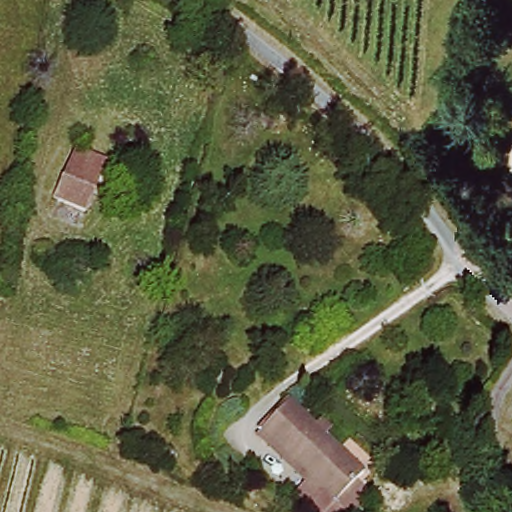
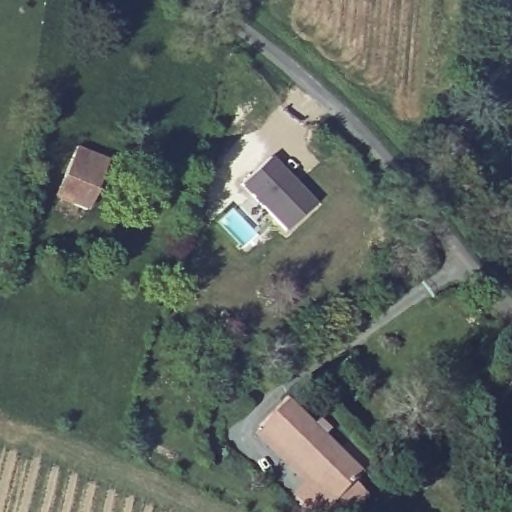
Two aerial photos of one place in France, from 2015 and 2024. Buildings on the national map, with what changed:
unchanged [(55,205),(75,158),(102,171),(81,217),(55,205)]
new [(313,205),(284,233),(267,216),(257,226),(241,208),(251,197),(241,185),(267,158),(313,205)]
unchanged [(293,496),(302,487),(254,439),(260,432),(288,404),(360,476),(352,484),(367,500),(355,512),(311,512),(293,496)]

